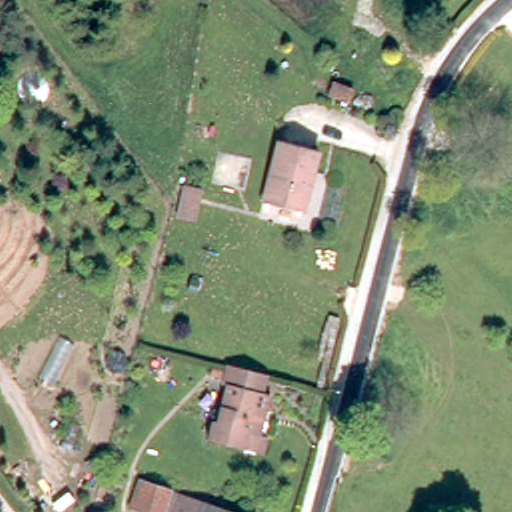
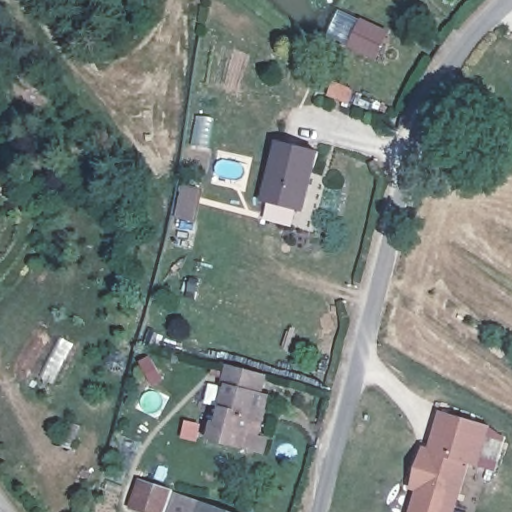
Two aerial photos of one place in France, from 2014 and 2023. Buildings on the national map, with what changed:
new [(390,32),(376,61),(347,47),(361,18),(390,32)]
unchanged [(302,211),(262,200),(278,141),(317,152),(302,211)]
unchanged [(183,208),(187,185),(203,189),(198,212),(196,219),(181,216),(183,208)]
unchanged [(263,454),(243,450),(208,441),(213,422),(217,423),(227,385),(223,384),(228,365),(267,375),(262,394),(270,396),(265,412),(260,436),(267,438),(263,454)]
new [(455,512),(410,512),(416,491),(410,489),(422,446),(429,448),(439,411),(491,426),(481,466),(470,463),(455,512)]
unchanged [(142,479),(173,491),(166,512),(145,512),(132,508),(142,479)]
unchanged [(234,512),(166,512),(173,491),(234,512)]

